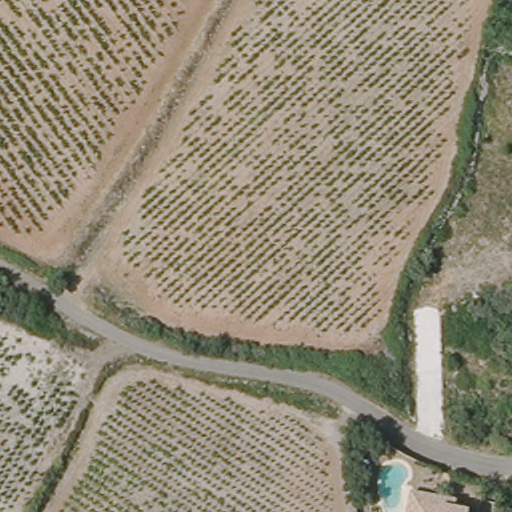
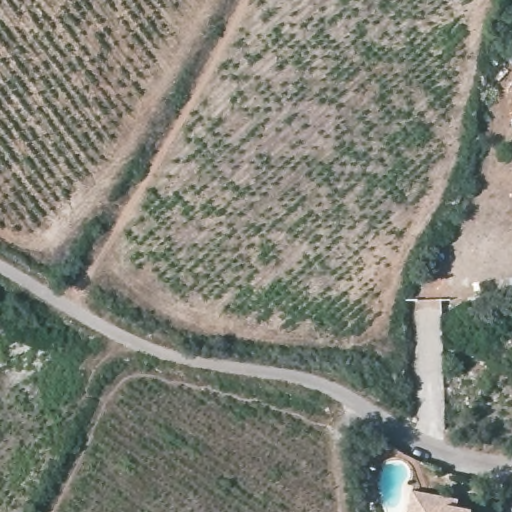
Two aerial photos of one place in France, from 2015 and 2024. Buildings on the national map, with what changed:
unchanged [(475,512),(411,512),(417,488),(451,497),(462,499),(460,508),(475,511),(475,512)]

